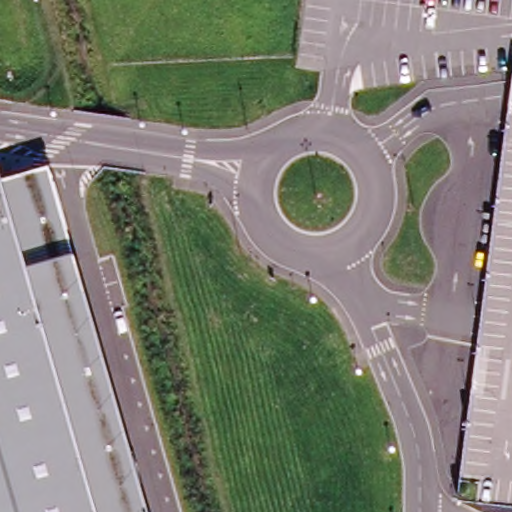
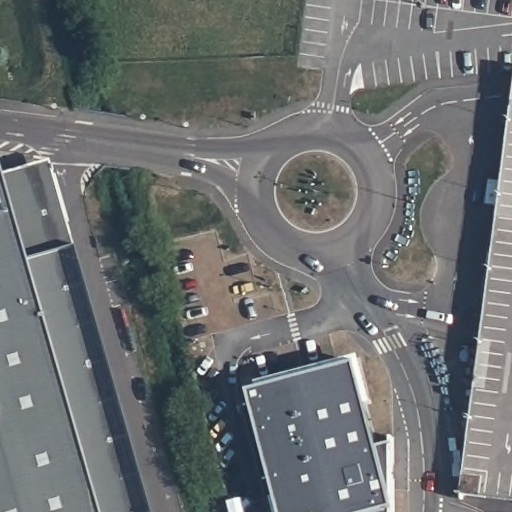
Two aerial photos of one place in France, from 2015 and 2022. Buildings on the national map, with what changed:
unchanged [(510,70),(512,71),(512,505),(455,498),(510,70)]
unchanged [(45,162),(145,512),(0,512),(0,174),(45,162)]
new [(270,498),(276,496),(248,391),(260,388),(257,383),(360,355),(373,404),(367,405),(379,448),(395,443),(395,509),(395,512),(273,512),(270,498)]

